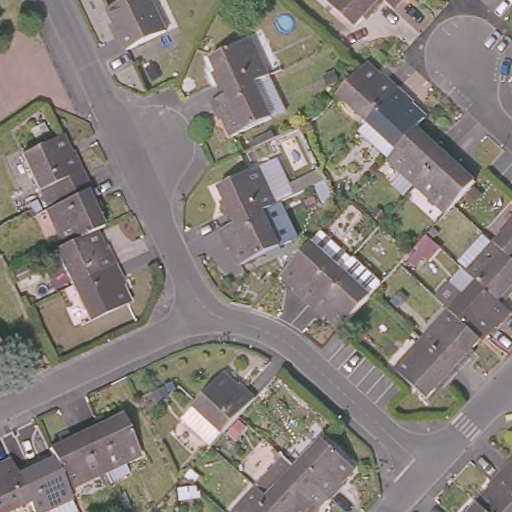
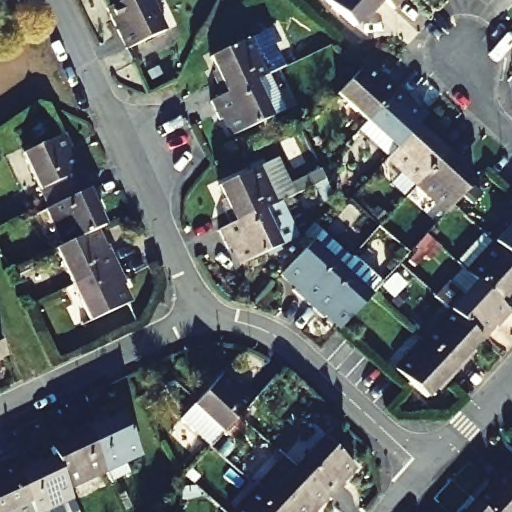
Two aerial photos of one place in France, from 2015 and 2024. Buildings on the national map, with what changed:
unchanged [(122,50),(101,10),(121,0),(146,0),(161,30),(122,50)]
unchanged [(358,18),(346,32),(311,0),(369,0),(377,7),(362,21),(358,18)]
unchanged [(401,0),(387,16),(377,7),(369,0),(401,0)]
unchanged [(228,95),(220,77),(225,75),(215,56),(251,39),(268,76),(228,95)]
unchanged [(331,93),(357,65),(360,62),(375,76),(379,73),(394,87),(362,121),(331,93)]
unchanged [(268,76),(285,111),(237,134),(229,115),(224,118),(215,101),(228,95),(268,76)]
unchanged [(362,121),(394,87),(408,100),(405,104),(421,119),(410,130),(392,149),(362,121)]
unchanged [(411,186),(382,160),(392,149),(410,130),(425,143),(428,140),(443,152),(411,186)]
unchanged [(47,187),(38,191),(22,155),(56,139),(65,160),(71,157),(86,192),(56,205),(47,187)]
unchanged [(443,152),(457,166),(455,170),(469,183),(450,203),(440,214),(411,186),(443,152)]
unchanged [(225,205),(230,201),(220,182),(256,167),(272,205),(259,210),(232,222),(225,205)]
unchanged [(86,192),(95,211),(89,214),(98,233),(90,236),(65,248),(47,210),(56,205),(86,192)]
unchanged [(259,210),(275,245),(240,262),(232,243),(226,246),(218,229),(232,222),(259,210)]
unchanged [(512,262),(493,245),(512,225),(512,262)]
unchanged [(53,253),(65,248),(90,236),(98,254),(105,250),(113,268),(70,288),(53,253)]
unchanged [(288,296),(292,292),(276,277),(302,250),(312,239),(341,266),(331,277),(302,308),(288,296)]
unchanged [(512,287),(512,294),(500,306),(475,283),(465,274),(493,245),(512,262),(512,282),(510,285),(512,287)]
unchanged [(331,277),(341,266),(370,293),(367,297),(360,305),(340,327),(335,332),(320,318),(316,322),(302,308),(331,277)]
unchanged [(120,284),(113,287),(122,310),(87,325),(70,288),(113,268),(120,284)]
unchanged [(500,306),(509,315),(496,330),(490,325),(476,340),(447,313),(433,300),(447,285),(462,298),(475,283),(500,306)]
unchanged [(476,340),(463,353),(468,358),(455,373),(421,342),(447,313),(476,340)]
unchanged [(442,387),(436,382),(422,398),(393,372),(421,342),(455,373),(442,387)]
unchanged [(243,410),(242,412),(228,426),(214,442),(185,415),(226,370),(240,383),(245,380),(260,393),(243,410)]
unchanged [(88,425),(92,432),(112,423),(128,458),(112,466),(118,478),(98,487),(92,474),(73,432),(88,425)]
unchanged [(92,474),(57,490),(46,465),(42,455),(57,448),(53,442),(73,432),(92,474)]
unchanged [(288,468),(315,438),(344,464),(332,477),(336,481),(321,498),(317,494),(288,468)]
unchanged [(317,494),(304,508),(308,512),(276,512),(250,488),(277,458),(288,468),(317,494)]
unchanged [(0,511),(0,460),(7,475),(19,502),(0,511)]
unchanged [(62,501),(49,507),(51,512),(23,512),(19,502),(7,475),(22,468),(25,475),(46,465),(57,490),(62,501)]
unchanged [(512,465),(512,477),(505,471),(512,465)]
unchanged [(483,506),(497,492),(492,487),(505,471),(512,477),(512,512),(489,512),(483,506)]
unchanged [(276,512),(229,512),(250,488),(276,512)]
unchanged [(483,506),(489,512),(477,512),(483,506)]

